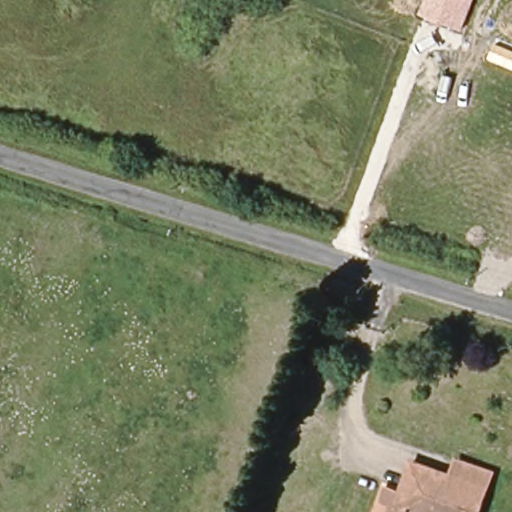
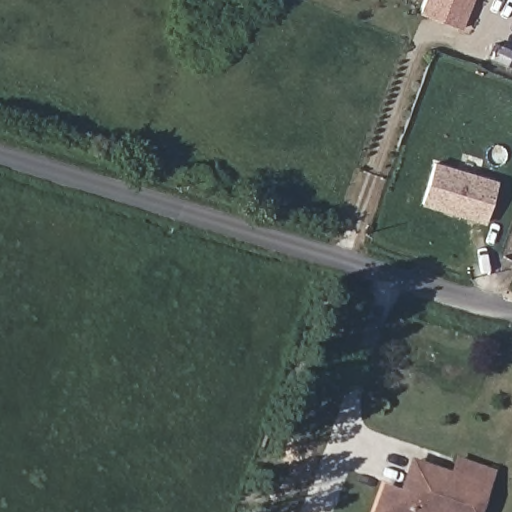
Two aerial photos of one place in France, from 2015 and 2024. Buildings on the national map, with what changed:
unchanged [(463,31),(419,15),(425,0),(475,0),(463,31)]
new [(436,164),(497,180),(487,221),(426,205),(436,164)]
unchanged [(452,477),(457,461),(492,473),(479,512),(381,512),(387,490),(403,495),(413,464),(452,477)]

